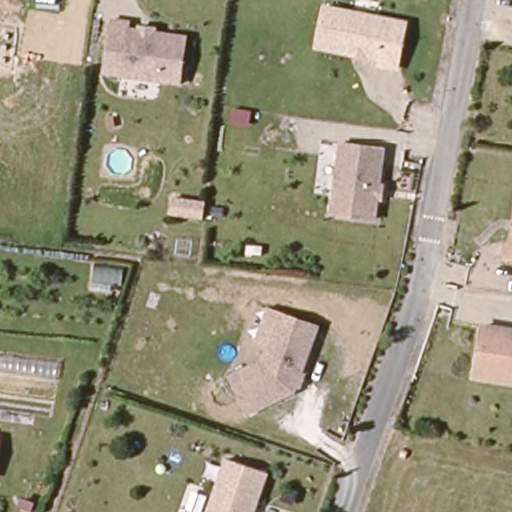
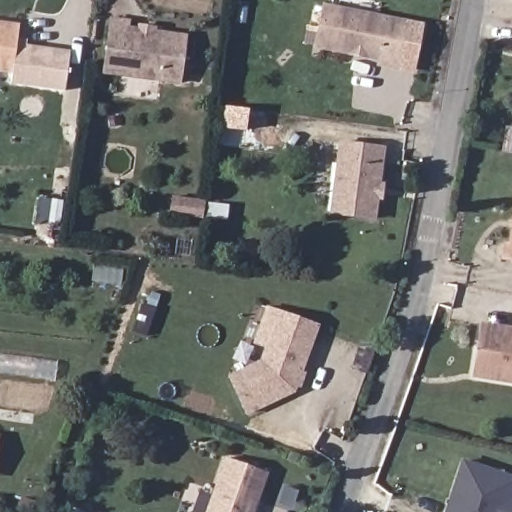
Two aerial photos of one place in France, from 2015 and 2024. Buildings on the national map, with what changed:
unchanged [(394,63),(378,60),(377,55),(311,44),(320,5),(404,17),(394,63)]
unchanged [(178,83),(100,73),(110,19),(126,20),(126,27),(186,35),(178,83)]
new [(12,73),(0,71),(0,21),(19,24),(12,73)]
new [(11,84),(12,73),(16,43),(71,49),(65,91),(11,84)]
unchanged [(371,214),(326,209),(338,139),(383,145),(371,214)]
new [(173,197),(203,201),(200,218),(169,214),(173,197)]
unchanged [(504,240),(511,240),(512,236),(512,257),(502,256),(504,240)]
unchanged [(296,387),(247,411),(229,376),(262,358),(266,344),(255,341),(268,306),(278,309),(318,322),(296,387)]
unchanged [(480,330),(512,333),(512,383),(473,379),(480,330)]
unchanged [(1,441),(0,449),(0,441),(1,441)]
unchanged [(250,512),(203,512),(222,455),(264,469),(250,512)]
new [(512,479),(512,491),(505,512),(446,512),(462,462),(512,479)]

